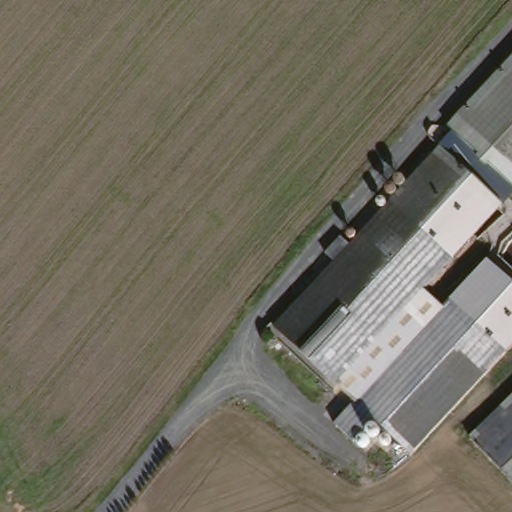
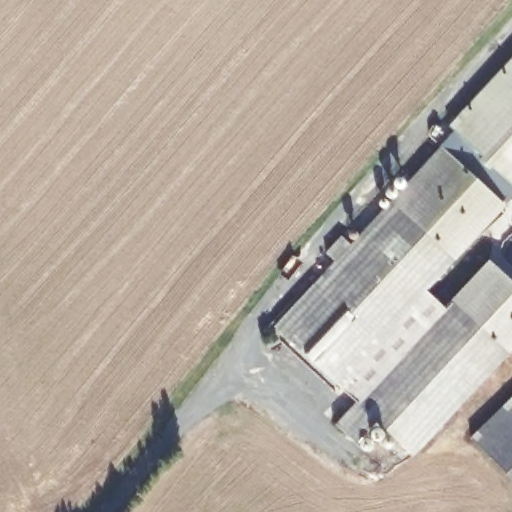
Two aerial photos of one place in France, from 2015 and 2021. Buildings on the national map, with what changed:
unchanged [(455,121),(512,60),(512,176),(455,121)]
unchanged [(431,284),(450,302),(493,256),(512,274),(512,352),(416,453),(380,420),(358,440),(342,425),(360,403),(340,381),(337,385),(279,328),(338,260),(329,253),(346,234),(356,238),(445,144),(508,204),(431,284)]
unchanged [(471,437),(512,397),(512,480),(471,437)]

